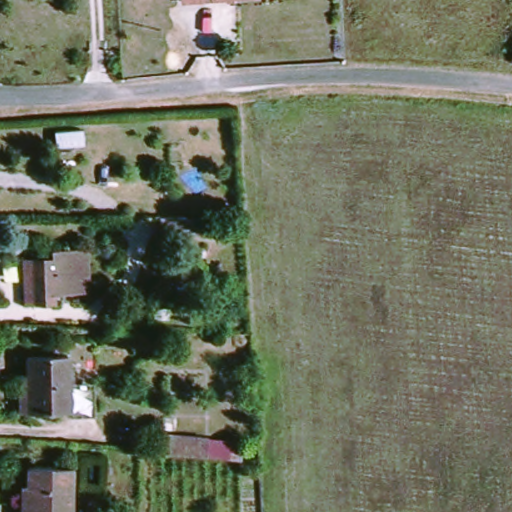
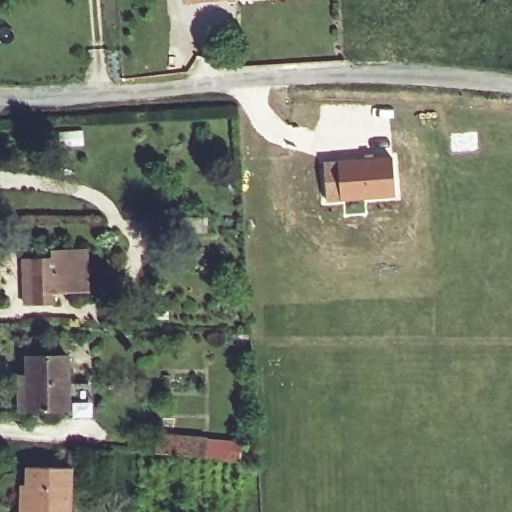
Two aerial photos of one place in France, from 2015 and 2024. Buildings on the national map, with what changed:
unchanged [(185,4),(184,0),(219,0),(185,4)]
new [(392,154),(396,197),(326,202),(322,160),(392,154)]
unchanged [(155,242),(152,227),(180,227),(182,241),(155,242)]
unchanged [(28,258),(58,258),(59,250),(92,249),(91,290),(58,291),(57,305),(24,304),(28,258)]
unchanged [(68,408),(27,411),(24,357),(66,354),(68,408)]
unchanged [(224,460),(177,457),(178,440),(225,442),(224,460)]
unchanged [(28,512),(33,464),(76,468),(72,512),(28,512)]

